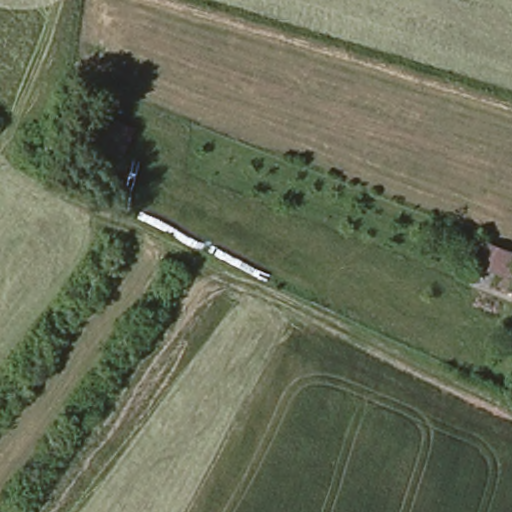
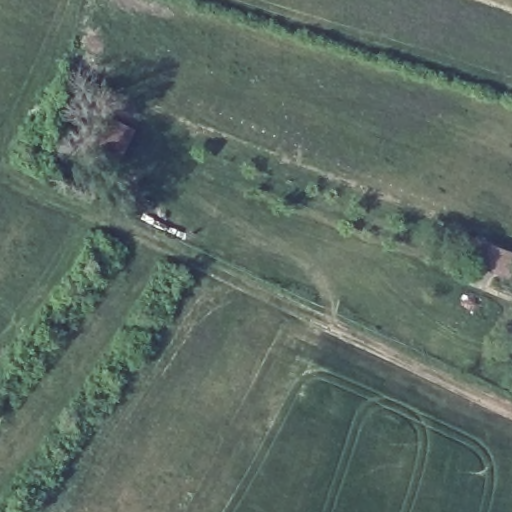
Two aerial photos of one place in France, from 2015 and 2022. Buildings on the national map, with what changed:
unchanged [(121,159),(95,148),(111,115),(135,126),(121,159)]
unchanged [(482,237),(512,248),(512,274),(473,259),(482,237)]

